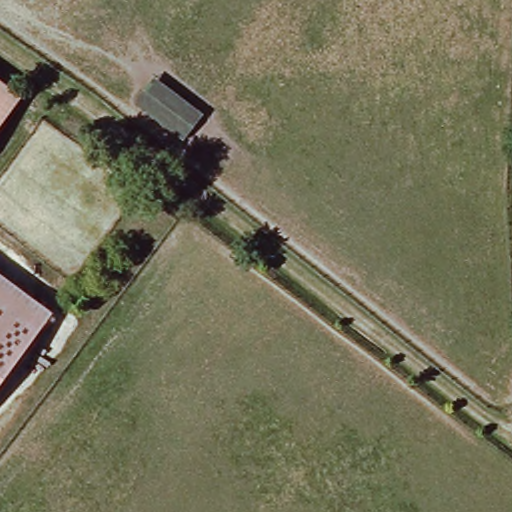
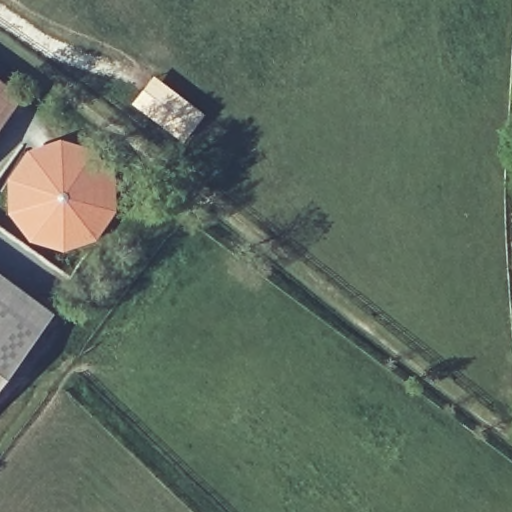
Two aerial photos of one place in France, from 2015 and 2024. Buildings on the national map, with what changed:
unchanged [(203,115),(182,142),(134,106),(154,80),(203,115)]
unchanged [(0,127),(0,81),(21,97),(0,127)]
new [(6,178),(26,150),(58,137),(90,147),(113,176),(114,210),(95,237),(62,250),(28,240),(8,212),(6,178)]
unchanged [(0,381),(0,269),(53,307),(0,381)]

